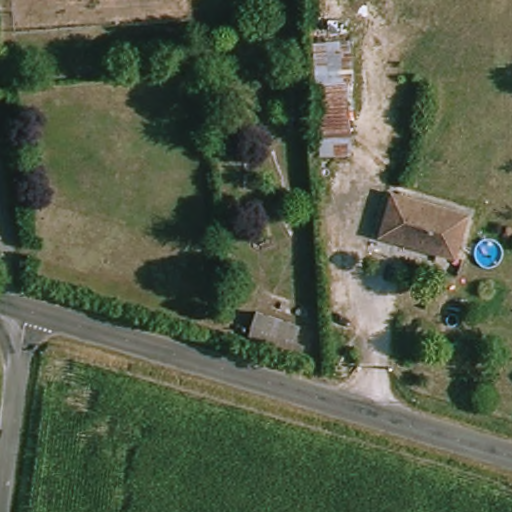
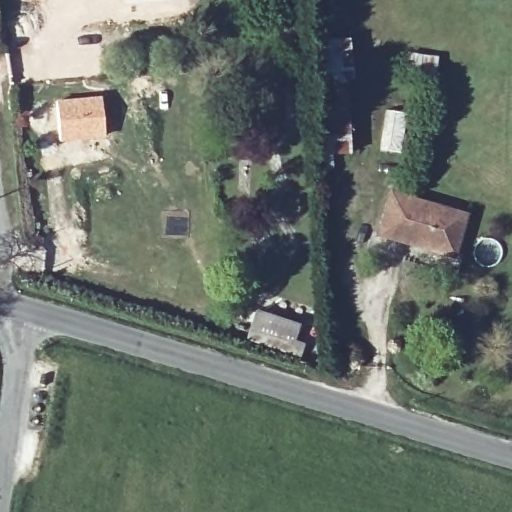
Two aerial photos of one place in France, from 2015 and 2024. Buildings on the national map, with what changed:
unchanged [(317,44),(329,46),(332,58),(343,60),(353,75),(350,77),(352,152),(323,152),(317,44)]
new [(100,94),(105,137),(59,142),(54,99),(100,94)]
unchanged [(381,229),(394,186),(466,206),(456,251),(381,229)]
unchanged [(249,302),(295,315),(292,331),(301,335),(299,351),(242,333),(249,302)]

